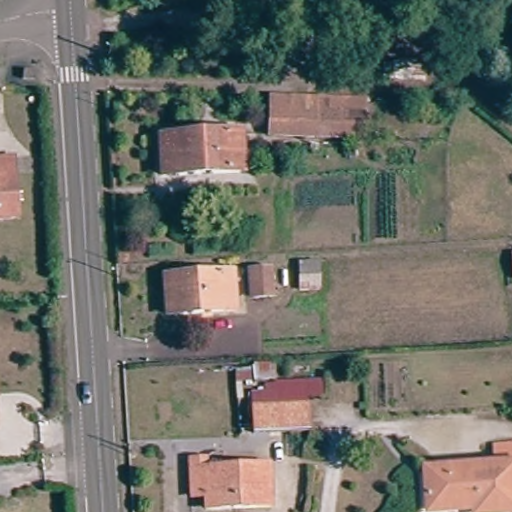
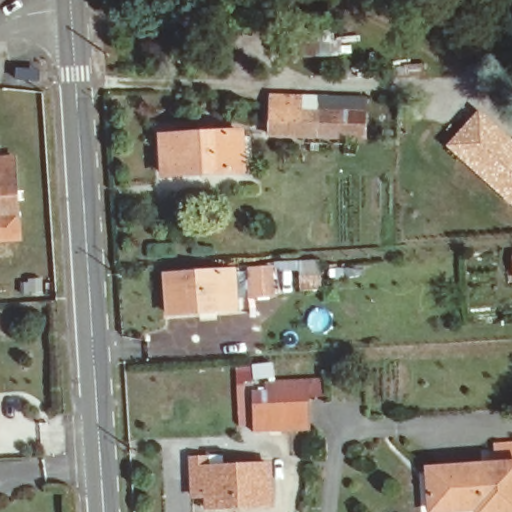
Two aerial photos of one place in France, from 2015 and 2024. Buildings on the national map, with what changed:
unchanged [(287,31),(327,28),(329,55),(290,59),(287,31)]
unchanged [(37,71),(36,80),(24,79),(24,71),(37,71)]
unchanged [(309,135),(273,134),(274,106),(297,106),(297,95),(310,96),(309,135)]
unchanged [(370,96),(369,136),(309,135),(310,96),(370,96)]
new [(480,107),(512,138),(512,208),(445,145),(480,107)]
unchanged [(242,171),(165,175),(162,136),(241,132),(242,171)]
unchanged [(0,217),(0,157),(16,155),(22,215),(0,217)]
unchanged [(321,288),(301,288),(300,261),(320,260),(321,288)]
unchanged [(251,270),(272,268),(282,268),(283,295),(273,295),(252,296),(251,270)]
unchanged [(236,310),(168,314),(166,275),(234,271),(236,310)]
unchanged [(270,362),(272,378),(255,380),(254,363),(270,362)]
unchanged [(267,383),(320,378),(322,396),(306,398),(310,430),(254,432),(252,393),(267,392),(267,383)]
unchanged [(473,505),(473,507),(432,510),(430,470),(498,465),(497,446),(512,445),(512,512),(478,512),(478,505),(473,505)]
unchanged [(217,512),(216,499),(202,500),(199,462),(214,461),(215,470),(235,468),(240,468),(275,465),(278,504),(217,512)]

